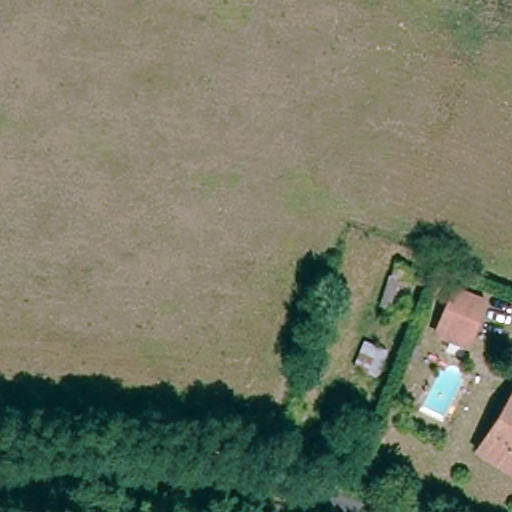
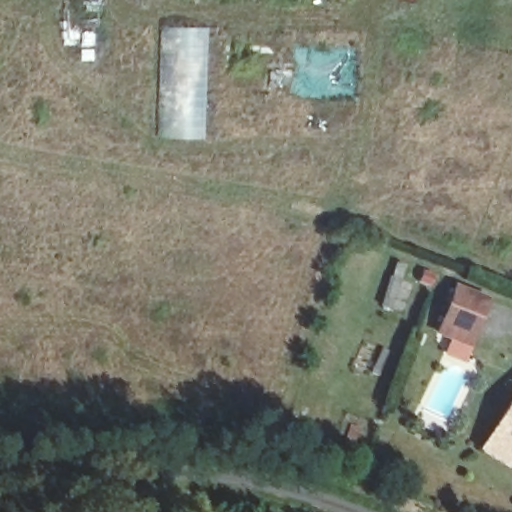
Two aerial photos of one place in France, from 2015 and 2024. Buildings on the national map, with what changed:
new [(156,88),(159,25),(207,27),(205,138),(156,136),(156,88)]
unchanged [(437,334),(441,324),(453,291),(481,302),(470,336),(466,345),(437,334)]
unchanged [(512,406),(512,458),(488,441),(512,406)]
unchanged [(512,471),(482,449),(488,441),(512,458),(512,471)]

